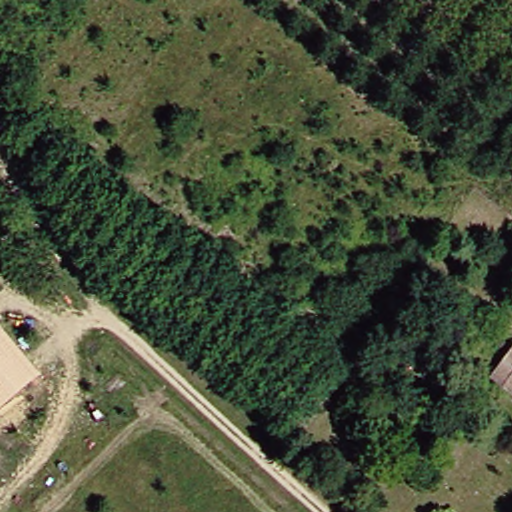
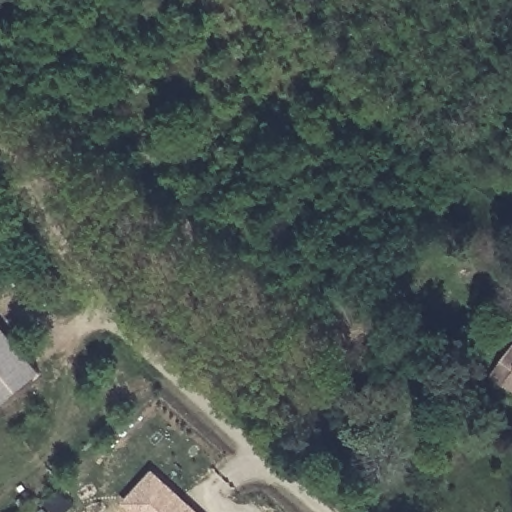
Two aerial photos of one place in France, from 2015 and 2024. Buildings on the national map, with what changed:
unchanged [(0,406),(0,323),(40,371),(0,406)]
unchanged [(485,370),(509,337),(512,340),(512,390),(485,370)]
new [(151,472),(196,512),(132,512),(123,504),(151,472)]

